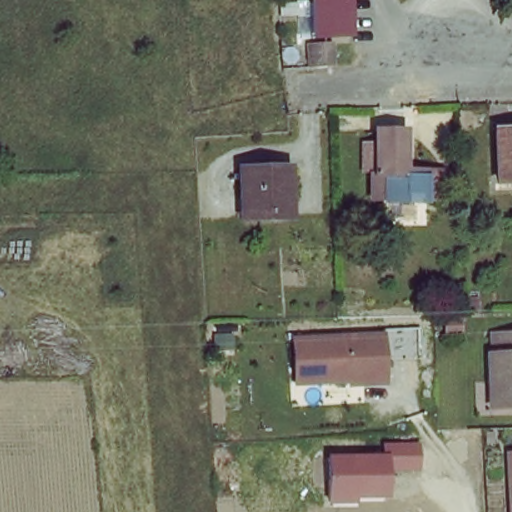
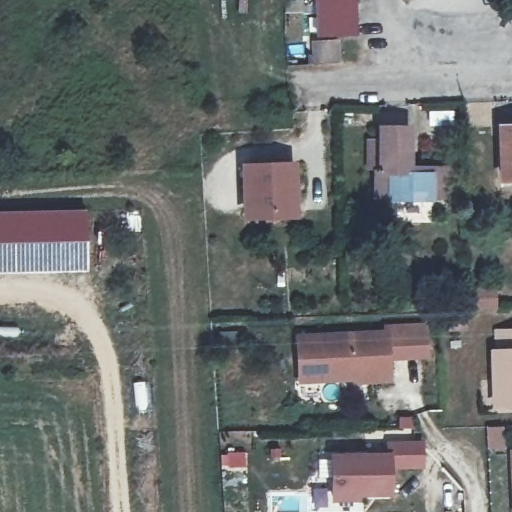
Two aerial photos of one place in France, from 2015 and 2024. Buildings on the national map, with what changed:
unchanged [(320,30),(318,0),(360,0),(361,28),(320,30)]
unchanged [(371,199),(369,128),(416,124),(418,167),(434,165),(435,205),(371,199)]
unchanged [(512,187),(501,188),(499,130),(512,129),(512,187)]
unchanged [(290,166),(293,215),(245,219),(242,169),(290,166)]
new [(85,210),(85,269),(0,272),(0,212),(85,210)]
new [(496,287),(497,310),(473,310),(472,287),(496,287)]
unchanged [(388,384),(296,387),(295,334),(387,331),(388,384)]
unchanged [(490,353),(504,352),(503,333),(512,332),(512,406),(492,407),(490,353)]
new [(425,439),(426,469),(393,471),(391,451),(386,451),(385,439),(425,439)]
unchanged [(512,512),(507,512),(507,465),(512,465),(512,512)]
unchanged [(337,473),(337,499),(316,499),(315,474),(337,473)]
unchanged [(370,474),(371,502),(345,502),(343,475),(370,474)]

